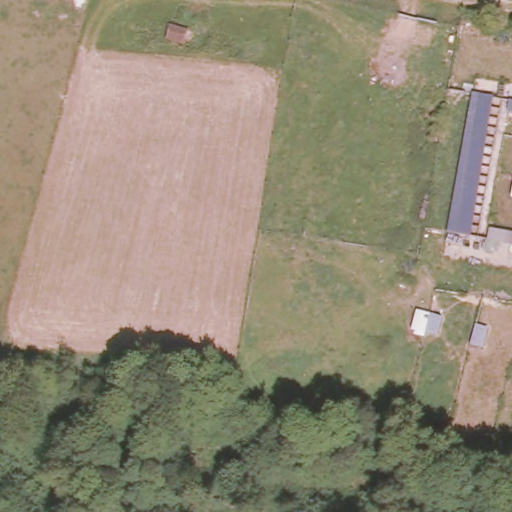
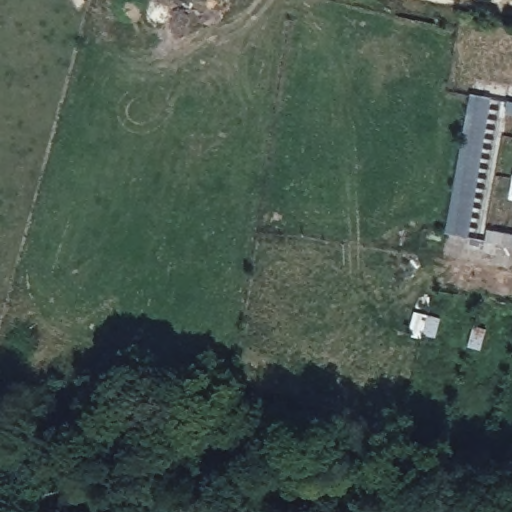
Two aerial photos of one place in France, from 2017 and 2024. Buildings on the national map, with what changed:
unchanged [(468,96),(480,99),(453,234),(442,233),(468,96)]

